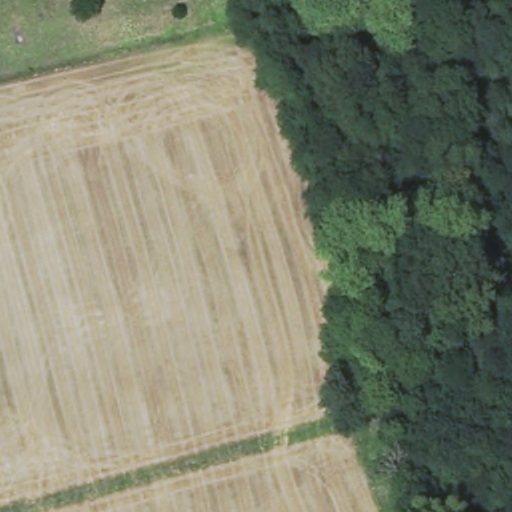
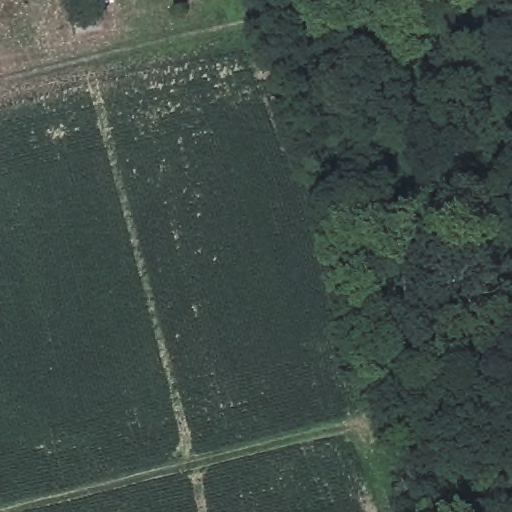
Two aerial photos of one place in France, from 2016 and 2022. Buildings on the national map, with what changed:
[]

